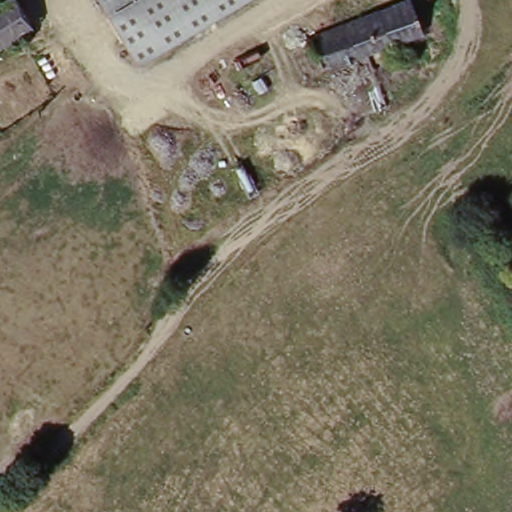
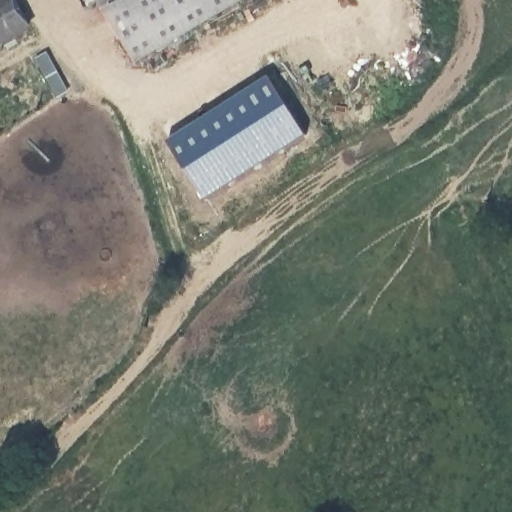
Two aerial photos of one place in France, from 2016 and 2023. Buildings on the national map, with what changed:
unchanged [(136,67),(96,0),(245,0),(136,67)]
new [(424,32),(376,51),(364,14),(401,0),(412,0),(424,32)]
unchanged [(0,9),(9,4),(28,40),(0,55),(0,9)]
new [(310,135),(209,199),(170,141),(270,77),(310,135)]

